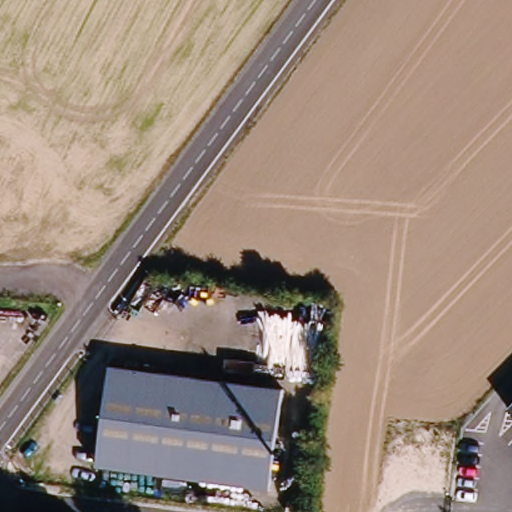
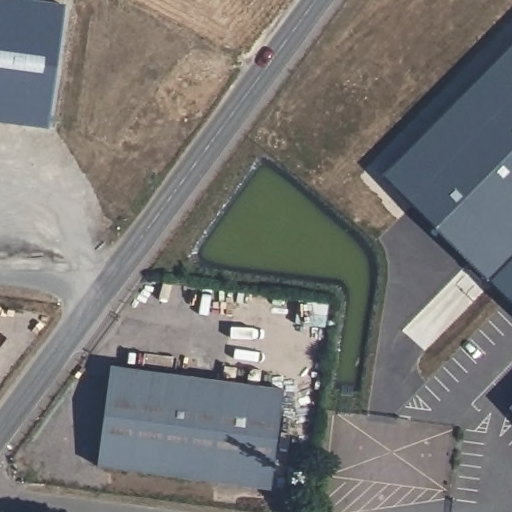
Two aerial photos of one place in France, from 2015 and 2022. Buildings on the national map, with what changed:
new [(0,121),(0,0),(31,0),(63,5),(46,128),(0,121)]
new [(512,45),(512,303),(382,175),(512,45)]
unchanged [(285,388),(270,487),(98,463),(112,363),(285,388)]
unchanged [(512,410),(509,407),(512,404),(512,410)]
unchanged [(299,512),(292,512),(286,511),(288,500),(300,501),(299,512)]

